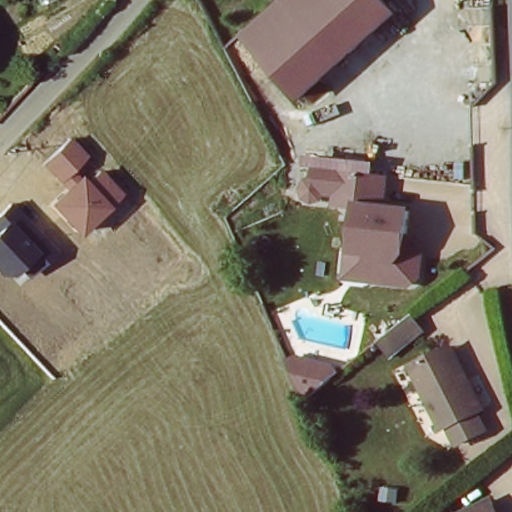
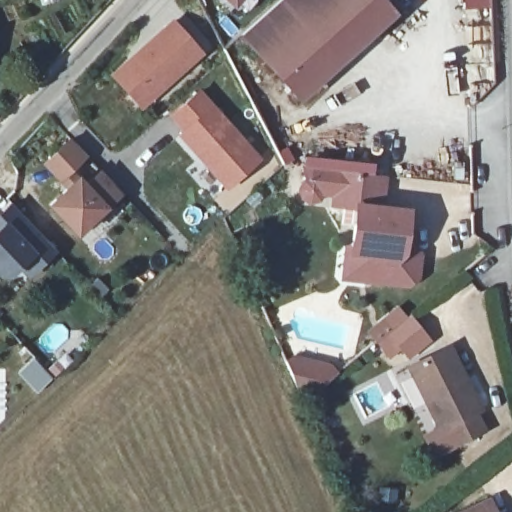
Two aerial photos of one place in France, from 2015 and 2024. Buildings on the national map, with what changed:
new [(240,0),(255,0),(248,7),(240,0)]
unchanged [(301,97),(246,33),(283,0),(384,0),(396,14),(301,97)]
new [(178,14),(209,48),(147,107),(116,73),(178,14)]
new [(263,154),(230,186),(169,115),(201,87),(263,154)]
unchanged [(68,137),(87,155),(76,170),(85,180),(97,168),(122,193),(75,237),(44,205),(63,185),(43,162),(68,137)]
unchanged [(385,174),(381,206),(408,210),(405,233),(400,232),(397,251),(418,254),(415,278),(408,284),(365,278),(369,251),(348,248),(354,204),(331,201),(333,190),(320,188),(315,176),(316,165),(385,174)]
unchanged [(8,201),(55,252),(28,277),(21,270),(15,276),(0,274),(0,209),(8,201)]
new [(397,304),(431,340),(406,359),(400,352),(389,360),(365,332),(397,304)]
unchanged [(455,381),(461,378),(476,409),(470,412),(478,429),(451,442),(441,422),(437,424),(405,364),(437,347),(455,381)]
new [(297,354),(302,355),(330,362),(339,372),(324,384),(295,388),(284,359),(297,354)]
unchanged [(487,499),(493,512),(461,512),(487,499)]

